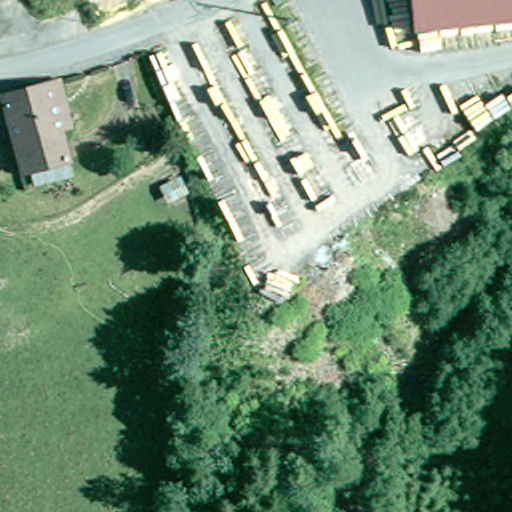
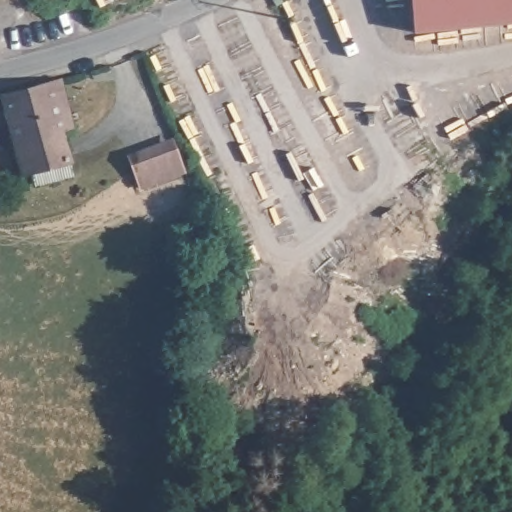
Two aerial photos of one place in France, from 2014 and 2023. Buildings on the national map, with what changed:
demolished [(154,0),(147,4),(144,0),(154,0)]
unchanged [(410,27),(407,0),(512,0),(512,19),(410,27)]
unchanged [(40,181),(36,182),(32,167),(24,169),(17,142),(5,93),(52,80),(65,77),(77,127),(64,130),(70,157),(74,172),(40,181)]
new [(139,196),(126,159),(171,144),(185,181),(139,196)]
demolished [(239,147),(245,165),(225,172),(219,155),(239,147)]

